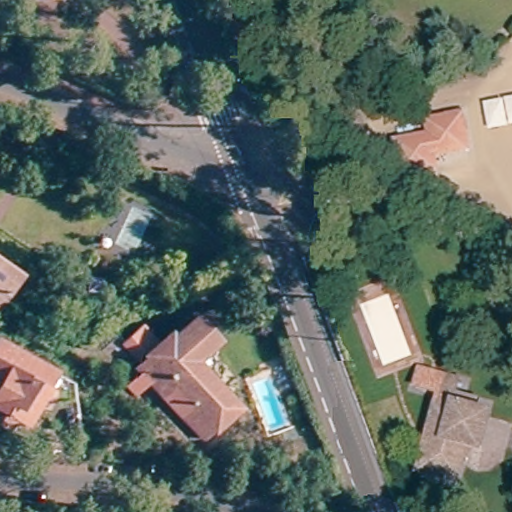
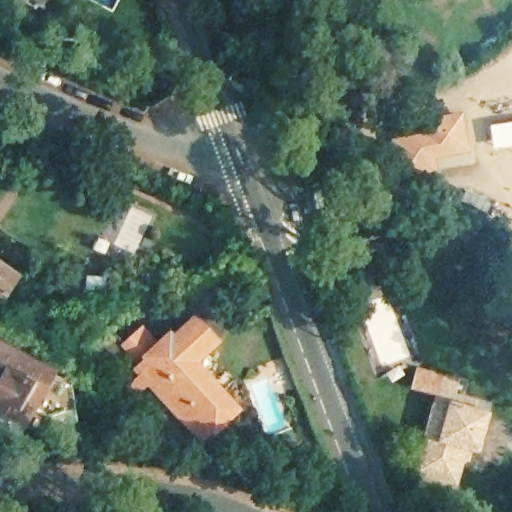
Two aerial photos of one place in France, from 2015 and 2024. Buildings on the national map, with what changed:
unchanged [(12,0),(27,0),(24,6),(12,0)]
unchanged [(470,162),(423,164),(402,184),(388,160),(410,149),(410,137),(422,127),(463,117),(470,162)]
unchanged [(17,281),(0,307),(0,269),(17,281)]
unchanged [(174,342),(195,322),(217,345),(209,352),(213,356),(216,361),(217,367),(215,375),(213,378),(210,382),(239,412),(214,435),(211,432),(202,441),(187,426),(162,400),(137,372),(144,366),(125,346),(143,330),(160,347),(170,338),(174,342)]
unchanged [(0,354),(59,386),(29,438),(0,422),(0,355),(0,354)]
unchanged [(445,394),(441,408),(463,414),(460,425),(463,427),(474,430),(465,462),(460,460),(456,470),(452,468),(445,495),(407,485),(432,391),(445,394)]

